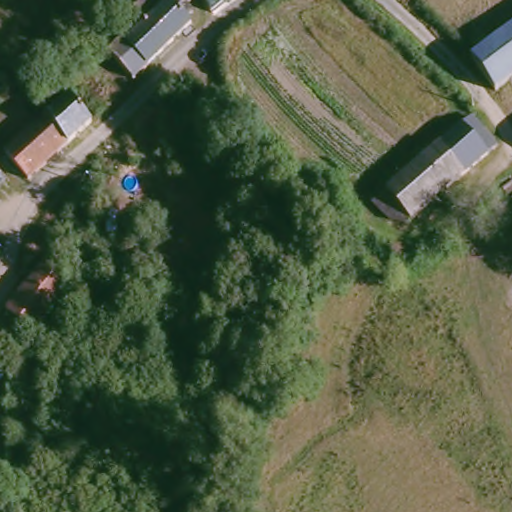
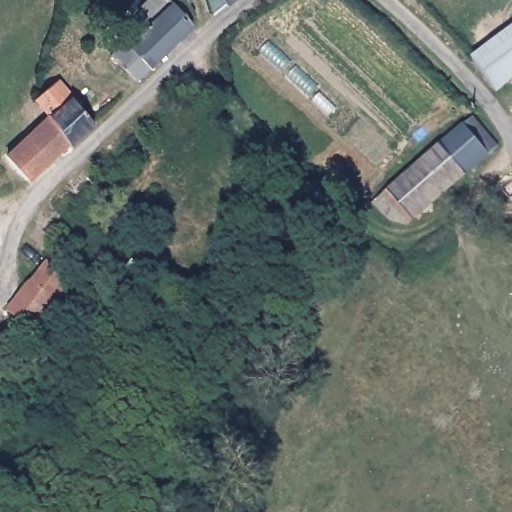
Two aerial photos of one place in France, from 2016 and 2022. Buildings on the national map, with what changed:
unchanged [(186,22),(182,27),(185,33),(145,69),(127,46),(142,33),(168,10),(164,3),(167,0),(181,0),(186,5),(182,12),(186,22)]
unchanged [(216,0),(232,0),(222,7),(216,0)]
unchanged [(500,94),(472,57),(512,28),(512,84),(500,94)]
unchanged [(80,122),(65,136),(43,114),(30,94),(50,75),(87,116),(80,122)]
unchanged [(27,175),(1,154),(43,114),(65,136),(27,175)]
unchanged [(465,118),(492,148),(404,228),(385,222),(369,202),(465,118)]
unchanged [(2,311),(44,266),(65,287),(25,332),(2,311)]

